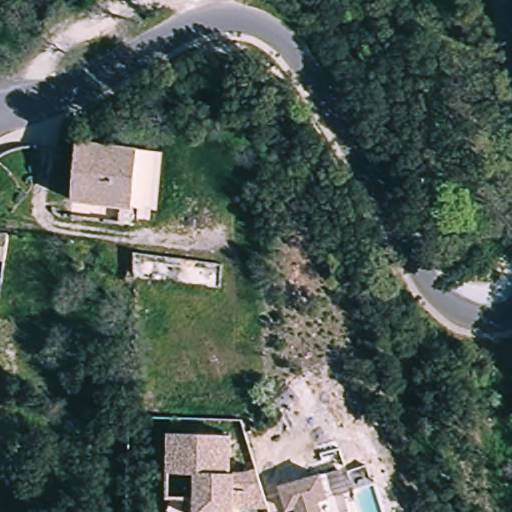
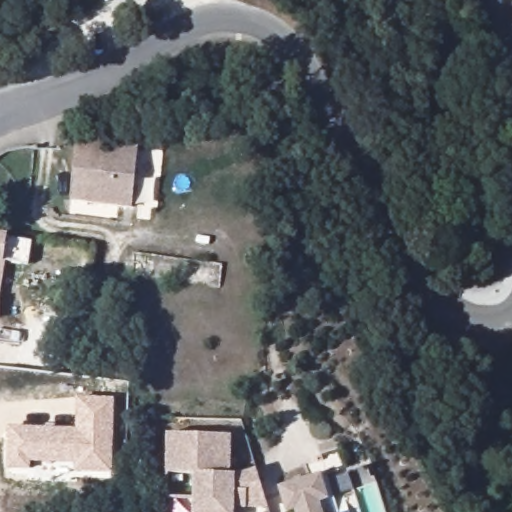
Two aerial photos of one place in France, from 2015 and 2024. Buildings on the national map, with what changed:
unchanged [(70,151),(70,146),(75,147),(103,147),(133,148),(132,205),(98,205),(69,205),(70,151)]
unchanged [(6,232),(2,264),(0,264),(0,231),(6,232)]
new [(77,397),(114,398),(112,472),(75,470),(75,463),(32,461),(32,468),(6,468),(8,425),(76,427),(77,397)]
unchanged [(227,476),(239,476),(252,470),(263,508),(228,508),(228,512),(190,512),(190,476),(165,476),(166,437),(227,437),(227,476)]
unchanged [(290,506),(284,483),(324,471),(331,494),(322,497),(326,512),(302,512),(299,504),(290,506)]

